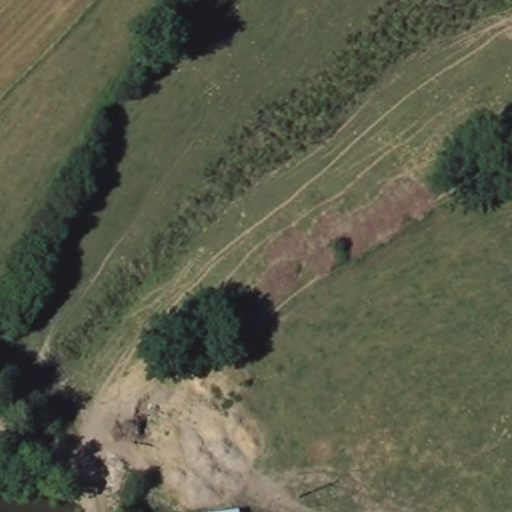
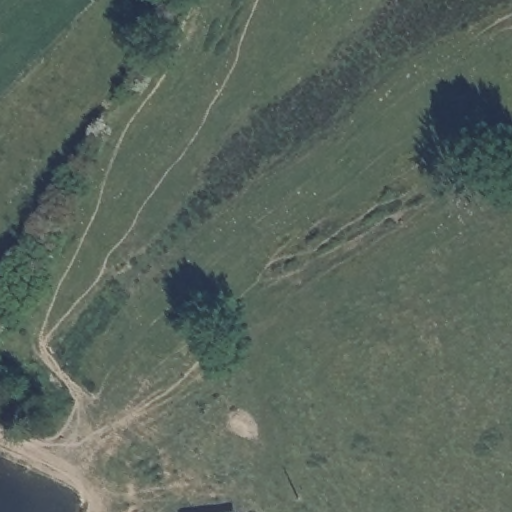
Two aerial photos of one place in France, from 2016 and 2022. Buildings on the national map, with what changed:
unchanged [(238,512),(219,512),(238,509),(238,512)]

